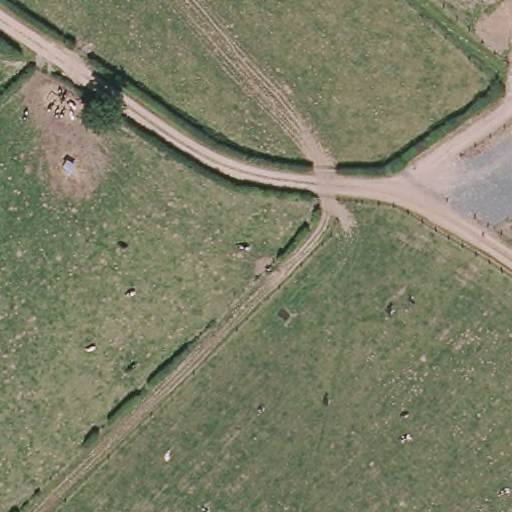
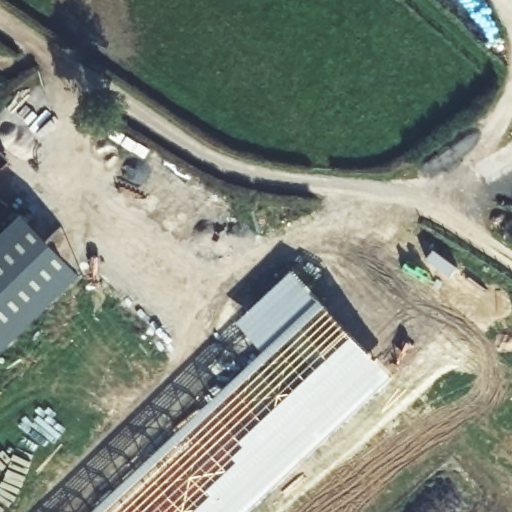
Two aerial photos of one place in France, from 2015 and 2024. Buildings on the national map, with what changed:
new [(82,275),(0,355),(0,236),(24,214),(82,275)]
new [(295,272),(394,377),(248,512),(95,512),(265,352),(239,323),(295,272)]

